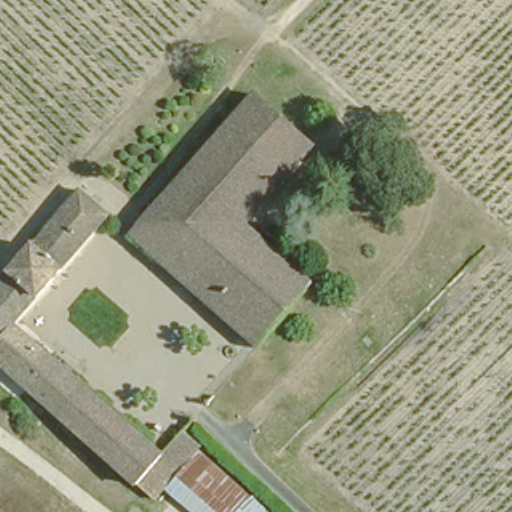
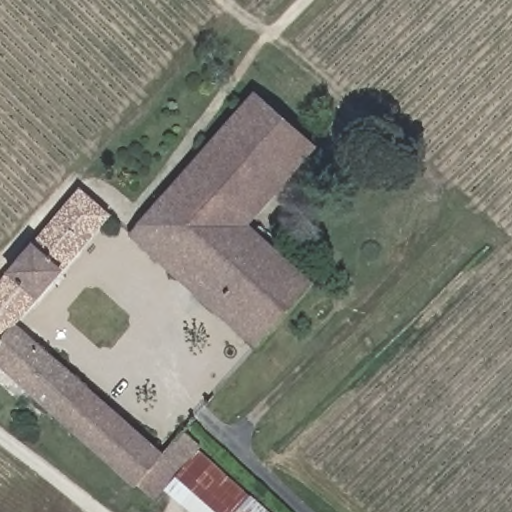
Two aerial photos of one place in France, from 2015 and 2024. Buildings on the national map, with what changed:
unchanged [(204,182),(182,163),(250,87),(307,138),(240,215),(204,182)]
unchanged [(306,273),(250,336),(125,227),(182,163),(204,182),(240,215),(306,273)]
unchanged [(106,211),(14,317),(161,449),(184,421),(202,438),(175,472),(156,455),(136,479),(9,367),(0,359),(0,273),(77,184),(106,211)]
unchanged [(269,512),(206,512),(170,478),(152,495),(136,479),(156,455),(175,472),(202,438),(275,505),(269,512)]
unchanged [(281,512),(269,512),(275,505),(281,512)]

